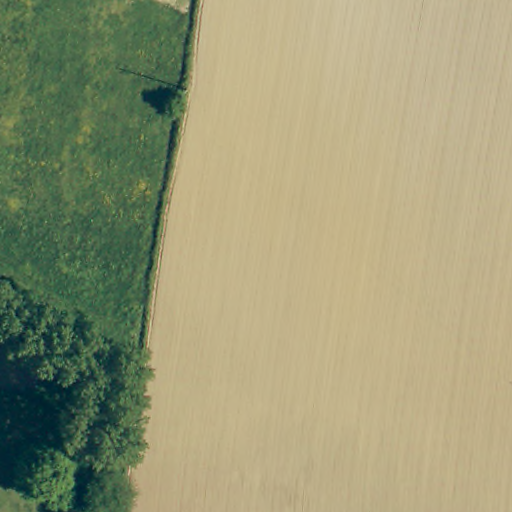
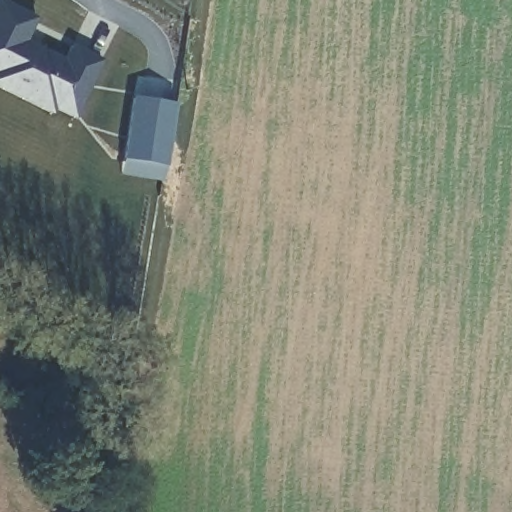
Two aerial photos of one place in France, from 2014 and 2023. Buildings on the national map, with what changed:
new [(75,120),(55,110),(52,115),(0,89),(0,1),(37,17),(26,41),(64,59),(70,44),(103,59),(75,120)]
new [(165,167),(162,181),(119,173),(121,161),(131,96),(176,103),(165,167)]

